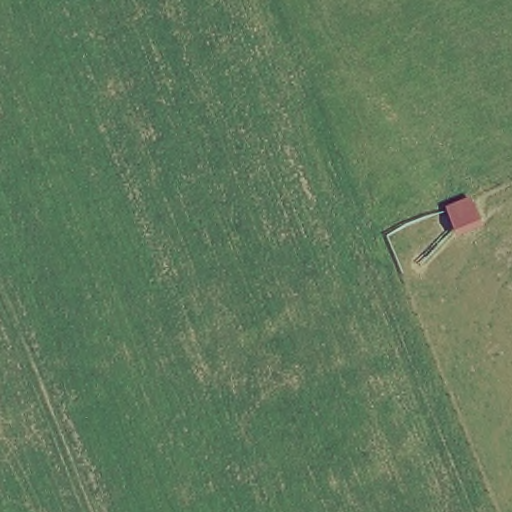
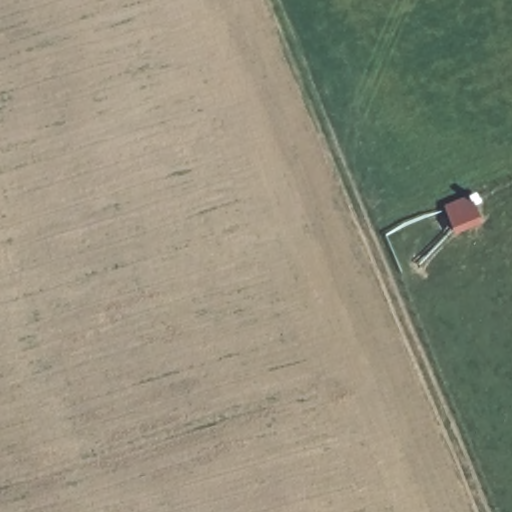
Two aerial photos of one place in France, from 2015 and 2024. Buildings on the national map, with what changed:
unchanged [(484,229),(457,239),(444,210),(470,198),(484,229)]

